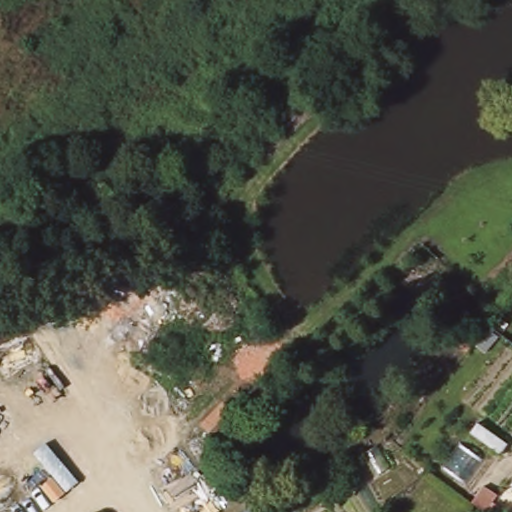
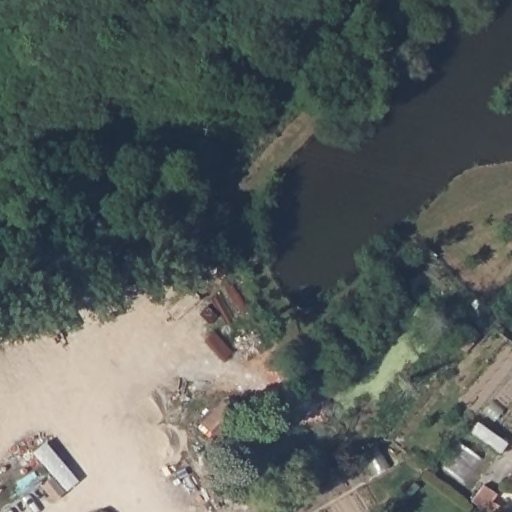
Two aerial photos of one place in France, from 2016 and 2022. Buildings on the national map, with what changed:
unchanged [(466,351),(455,341),(467,325),(479,335),(466,351)]
unchanged [(239,418),(226,430),(218,438),(204,425),(213,416),(225,405),(239,418)]
unchanged [(240,500),(208,462),(220,452),(252,491),(240,500)]
unchanged [(262,512),(245,512),(255,502),(262,512)]

